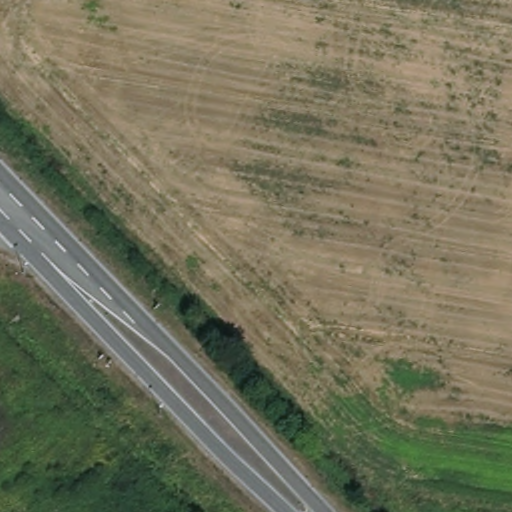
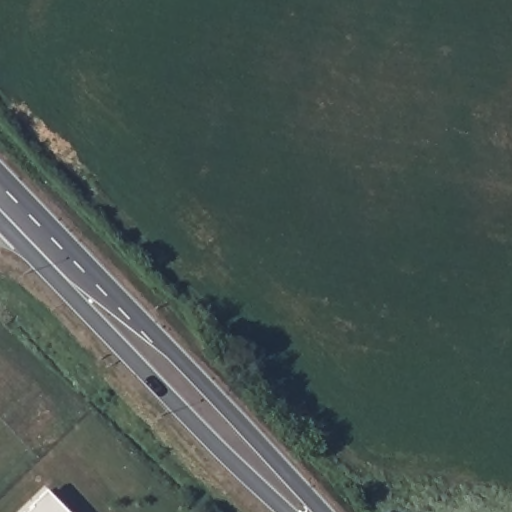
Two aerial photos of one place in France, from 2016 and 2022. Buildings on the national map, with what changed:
new [(45,492),(65,512),(24,512),(45,492)]

